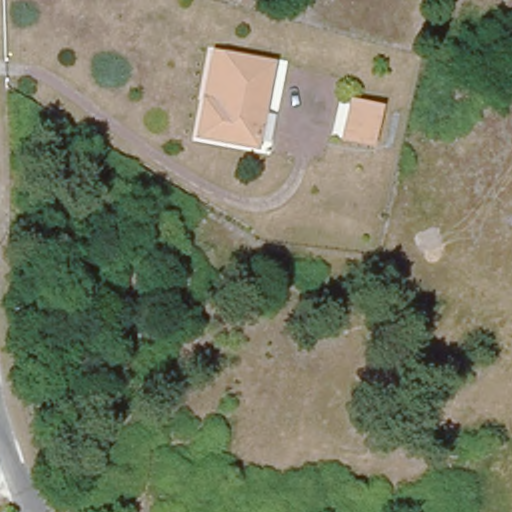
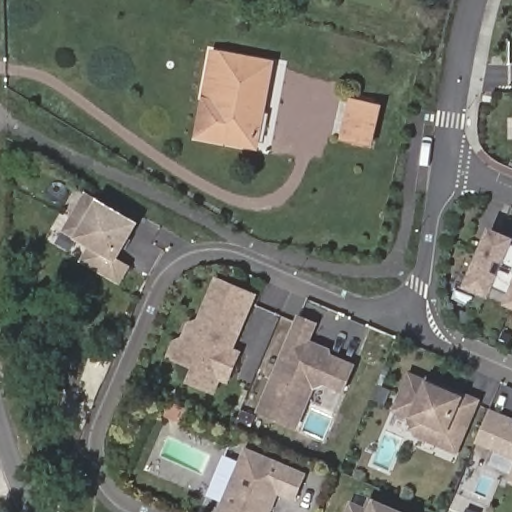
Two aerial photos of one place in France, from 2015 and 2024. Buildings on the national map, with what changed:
unchanged [(238,0),(271,0),(268,9),(238,0)]
unchanged [(257,142),(197,132),(204,96),(212,48),(222,49),(271,59),(257,142)]
unchanged [(352,101),(377,106),(370,142),(345,137),(352,101)]
new [(99,199),(140,222),(118,258),(130,265),(120,284),(80,262),(90,247),(74,237),(63,231),(85,192),(99,199)]
new [(508,292),(494,286),(489,298),(463,287),(489,227),(512,236),(512,309),(503,305),(508,292)]
new [(165,357),(172,339),(183,337),(188,322),(199,319),(215,277),(258,293),(235,348),(242,351),(229,384),(220,381),(215,395),(186,382),(192,368),(165,357)]
new [(332,354),(356,364),(345,393),(325,385),(315,390),(297,429),(255,412),(297,313),(318,322),(310,339),(331,348),(332,354)]
new [(457,454),(416,437),(410,418),(393,411),(410,371),(426,379),(427,374),(481,399),(457,454)]
new [(46,423),(40,394),(67,387),(73,415),(46,423)]
new [(490,408),(512,417),(512,459),(476,443),(490,408)]
new [(295,502),(277,494),(271,512),(218,512),(245,447),(307,472),(295,502)]
new [(512,470),(512,482),(508,480),(512,470)]
new [(374,500),(405,512),(346,512),(351,501),(365,506),(368,497),(374,500)]

